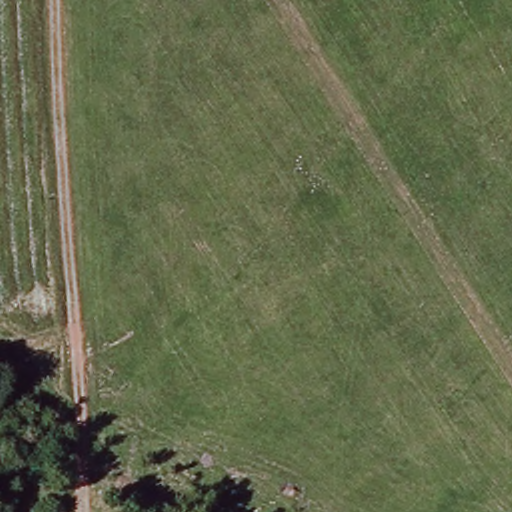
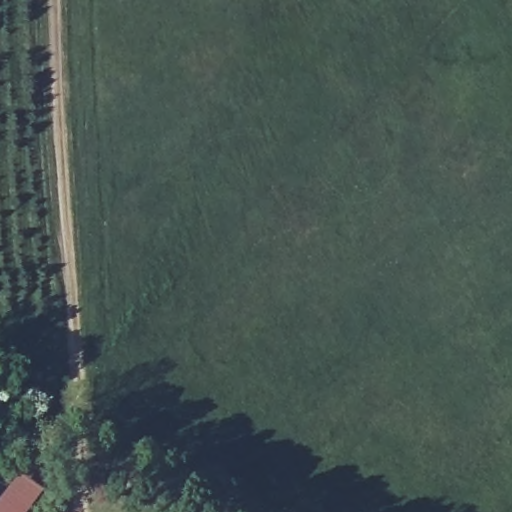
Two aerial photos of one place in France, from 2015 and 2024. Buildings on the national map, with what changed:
new [(25,512),(0,512),(0,499),(17,477),(39,494),(25,512)]

